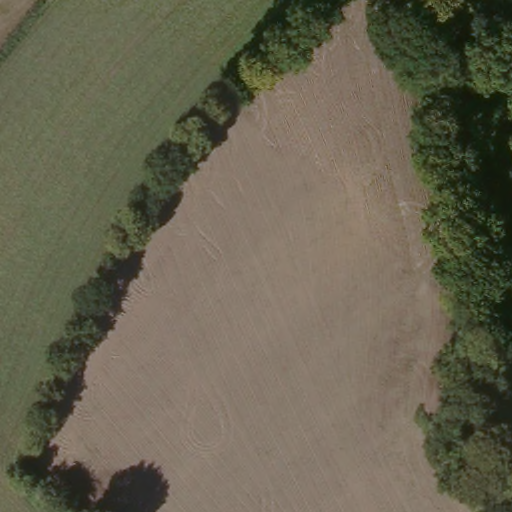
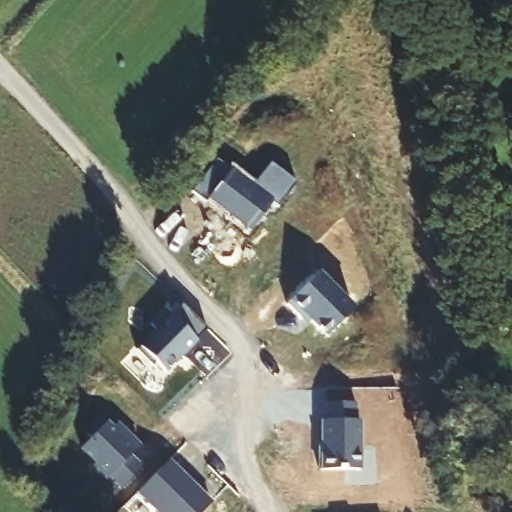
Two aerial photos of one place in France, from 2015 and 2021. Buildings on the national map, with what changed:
new [(218,157),(254,184),(271,160),(299,181),(279,206),(273,201),(252,228),(211,197),(207,200),(193,190),(218,157)]
new [(321,269),(357,305),(330,332),(308,310),(304,315),(289,301),(321,269)]
new [(157,327),(151,321),(166,306),(172,312),(183,301),(209,326),(198,338),(201,341),(186,357),(182,353),(166,369),(156,360),(154,363),(138,347),(157,327)]
new [(320,452),(323,452),(323,440),(327,440),(327,402),(357,401),(356,419),(361,419),(361,469),(320,469),(320,452)]
new [(89,433),(106,417),(115,427),(120,422),(126,428),(143,445),(134,455),(144,466),(124,487),(113,476),(110,478),(96,464),(99,462),(84,447),(94,437),(89,433)]
new [(215,502),(205,512),(162,512),(141,491),(171,459),(215,502)]

